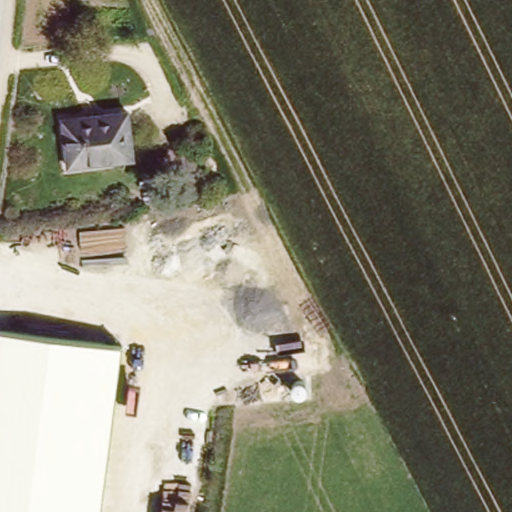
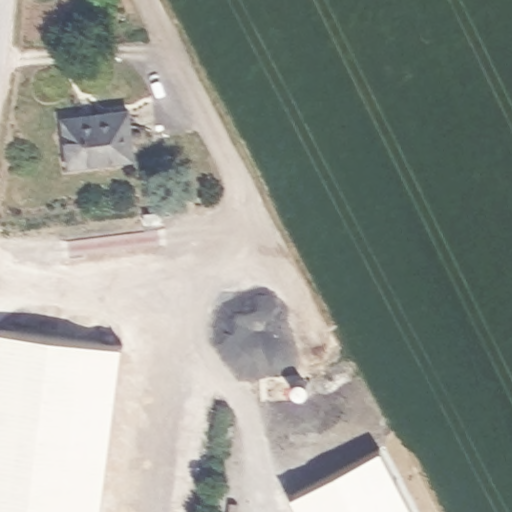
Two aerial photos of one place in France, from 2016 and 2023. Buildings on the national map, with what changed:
unchanged [(134,149),(72,166),(60,119),(122,103),(134,149)]
unchanged [(101,512),(0,512),(0,331),(121,348),(101,512)]
new [(299,512),(290,494),(380,449),(413,512),(299,512)]

